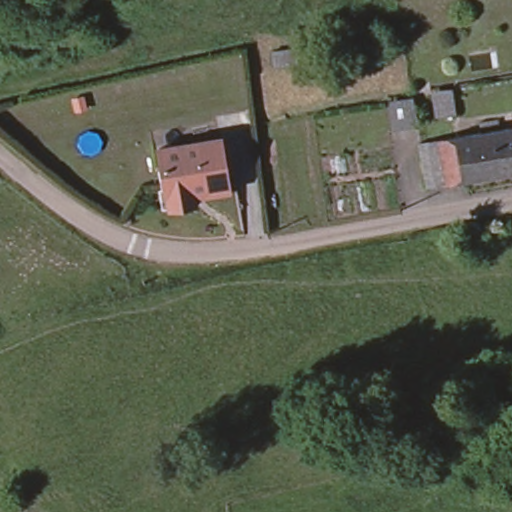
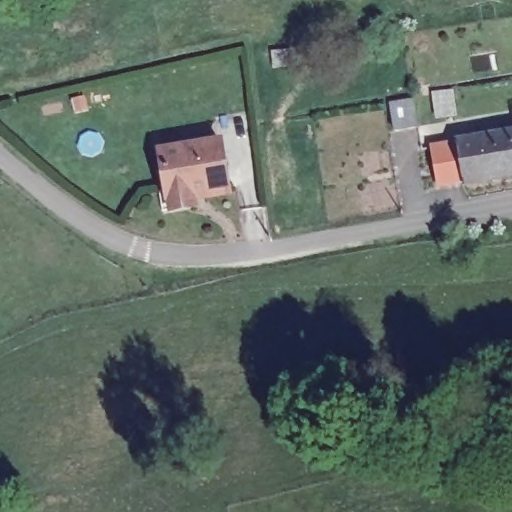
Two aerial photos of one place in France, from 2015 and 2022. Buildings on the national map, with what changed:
unchanged [(306,47),(307,63),(274,66),(272,50),(306,47)]
unchanged [(413,102),(417,127),(394,130),(389,105),(413,102)]
unchanged [(454,139),(512,129),(512,175),(463,184),(454,139)]
unchanged [(194,199),(195,206),(169,210),(157,142),(215,130),(226,187),(227,192),(194,199)]
unchanged [(428,190),(421,145),(454,139),(463,184),(428,190)]

